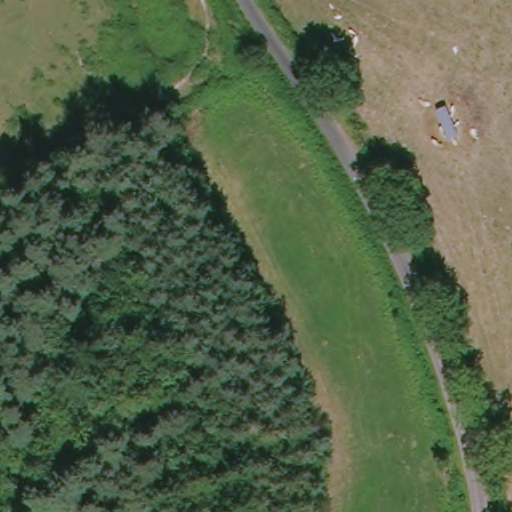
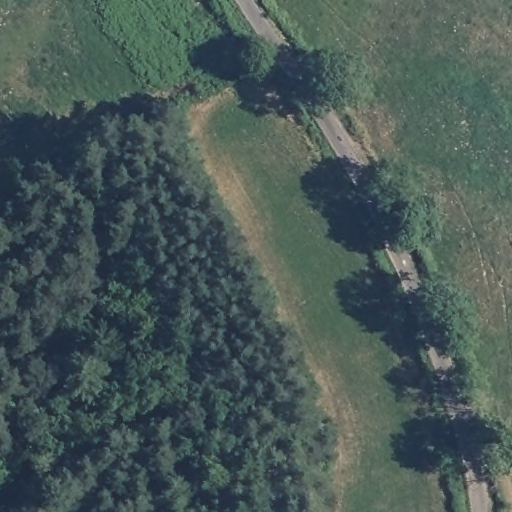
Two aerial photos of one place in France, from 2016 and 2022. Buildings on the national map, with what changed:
[]

